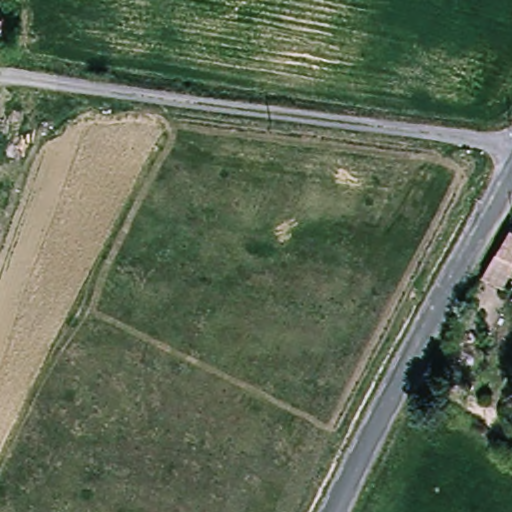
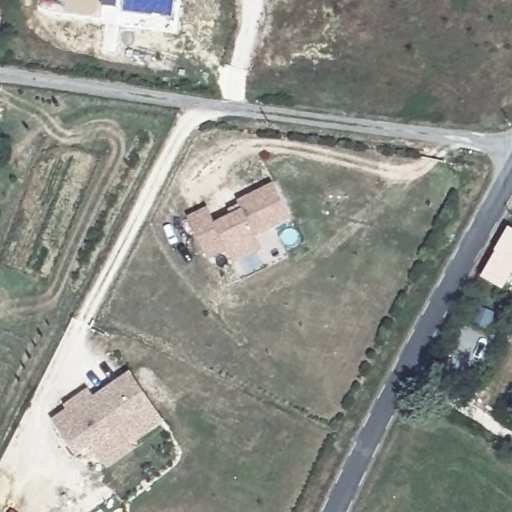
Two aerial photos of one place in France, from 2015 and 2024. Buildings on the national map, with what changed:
new [(209,209),(217,225),(244,212),(240,203),(276,185),(295,223),(261,240),(267,253),(238,268),(229,253),(211,262),(189,219),(209,209)]
unchanged [(512,239),(512,255),(505,252),(512,239)]
new [(166,424),(134,444),(126,433),(97,451),(94,447),(78,457),(53,422),(69,411),(66,406),(89,390),(95,398),(131,373),(166,424)]

